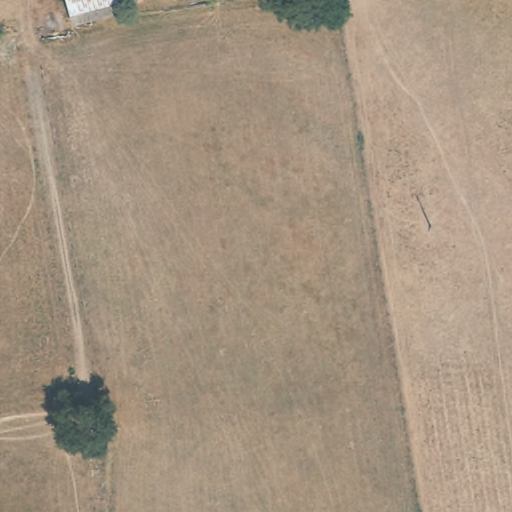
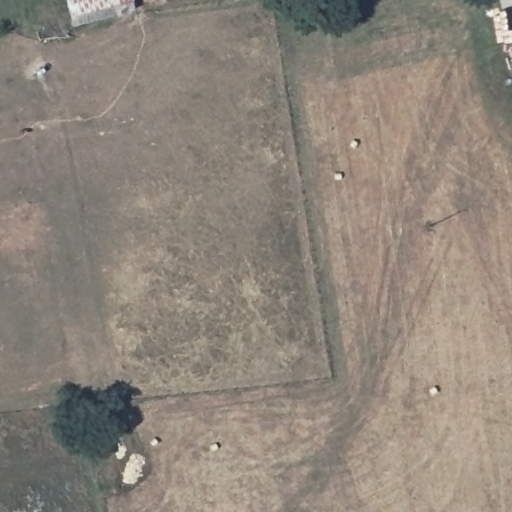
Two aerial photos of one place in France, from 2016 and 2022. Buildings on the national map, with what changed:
unchanged [(131,0),(135,14),(70,30),(62,0),(131,0)]

